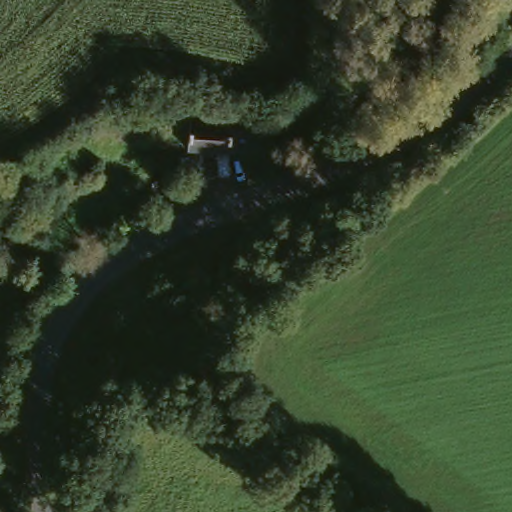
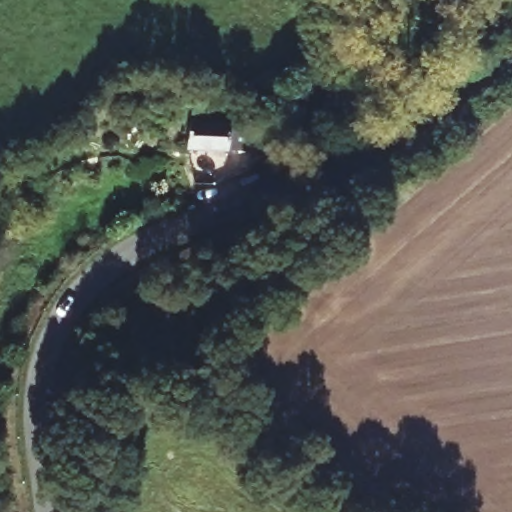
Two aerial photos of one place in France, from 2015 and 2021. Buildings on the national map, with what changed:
unchanged [(256,120),(288,103),(296,116),(268,135),(256,120)]
unchanged [(232,118),(233,123),(245,121),(247,137),(234,139),(235,144),(189,149),(187,124),(232,118)]

